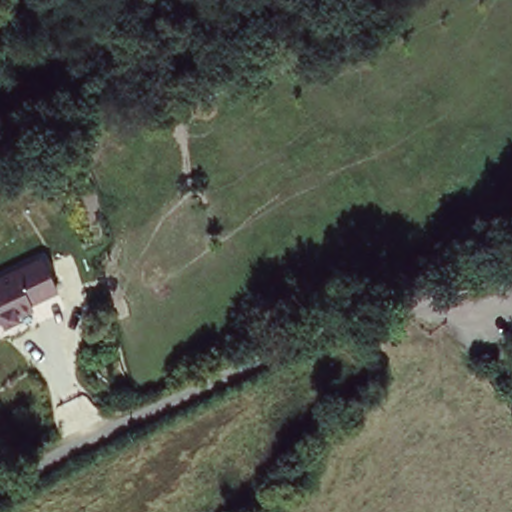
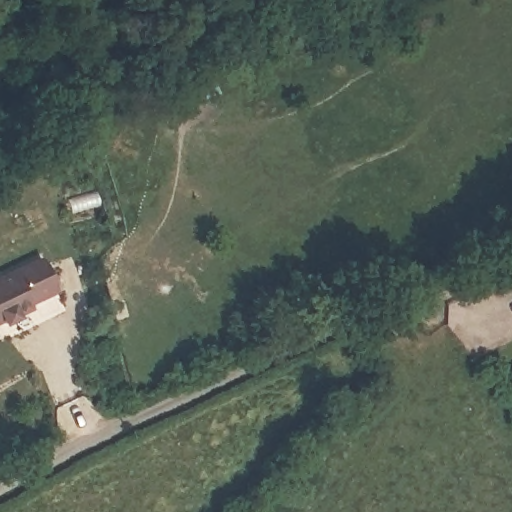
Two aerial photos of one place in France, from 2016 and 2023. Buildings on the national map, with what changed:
unchanged [(33,301),(36,308),(0,323),(0,273),(41,254),(46,264),(52,279),(57,290),(33,301)]

